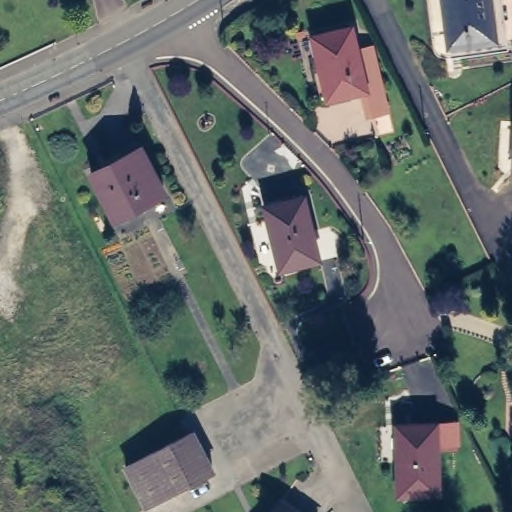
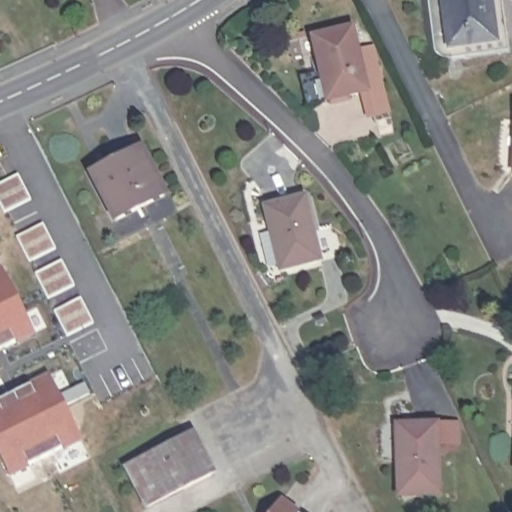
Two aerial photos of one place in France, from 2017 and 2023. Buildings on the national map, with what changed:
unchanged [(443,51),(436,0),(493,0),(498,44),(443,51)]
unchanged [(348,26),(362,90),(324,99),(309,35),(348,26)]
unchanged [(139,149),(163,196),(113,221),(88,174),(139,149)]
unchanged [(299,196),(316,258),(277,267),(261,205),(299,196)]
new [(6,267),(36,338),(0,353),(0,270),(6,267)]
new [(43,373),(77,442),(13,474),(0,447),(0,395),(43,373)]
unchanged [(439,492),(399,493),(397,458),(397,423),(402,423),(438,422),(439,492)]
unchanged [(196,431),(216,471),(149,505),(128,465),(196,431)]
unchanged [(283,504),(294,512),(277,512),(283,504)]

